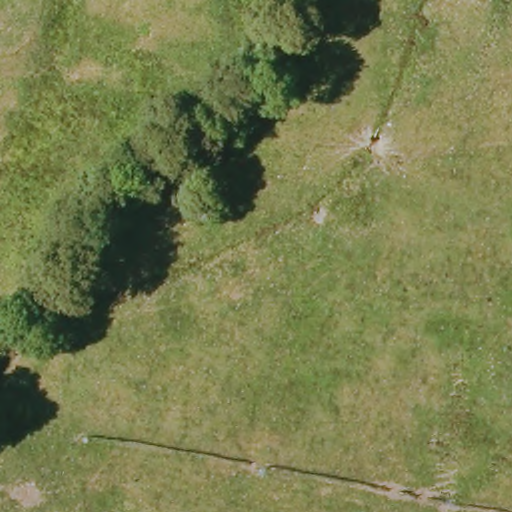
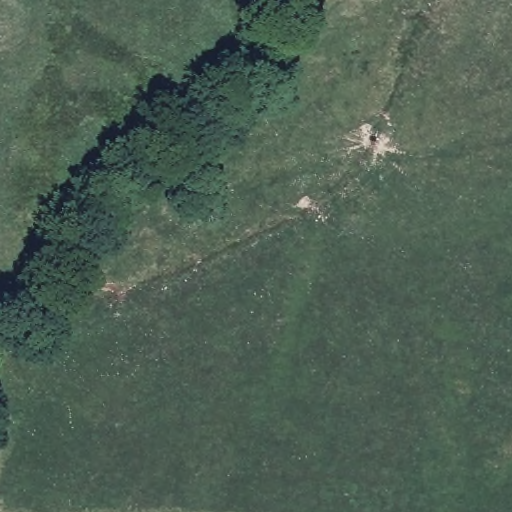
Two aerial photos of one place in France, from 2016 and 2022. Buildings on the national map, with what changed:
[]

